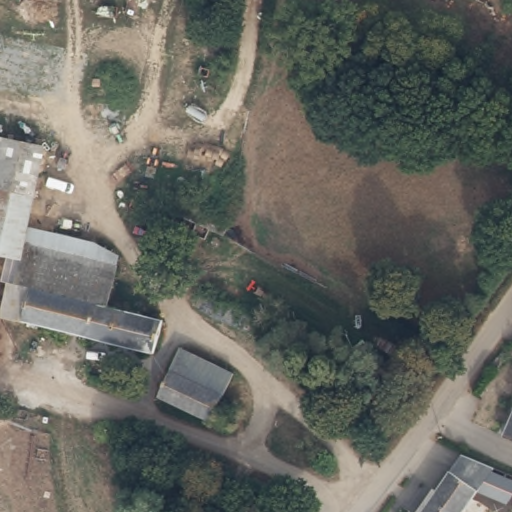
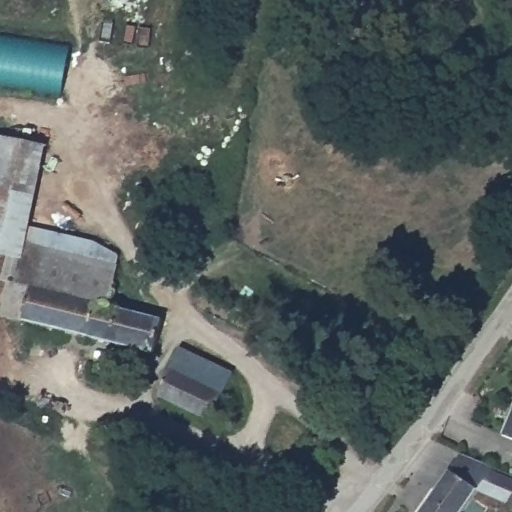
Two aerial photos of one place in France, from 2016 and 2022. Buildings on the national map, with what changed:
new [(65,94),(0,84),(0,37),(73,48),(65,94)]
unchanged [(28,228),(0,220),(0,134),(44,146),(28,228)]
unchanged [(0,220),(28,228),(24,246),(20,258),(0,253),(0,220)]
unchanged [(109,264),(101,303),(160,316),(154,349),(19,319),(16,329),(0,325),(9,284),(14,285),(20,258),(24,246),(109,264)]
unchanged [(150,392),(163,367),(231,397),(220,423),(150,392)]
unchanged [(506,434),(512,418),(512,436),(506,434)]
unchanged [(469,448),(498,462),(465,512),(429,512),(427,511),(469,448)]
unchanged [(280,512),(254,512),(267,500),(280,512)]
unchanged [(429,512),(425,512),(427,511),(429,512)]

